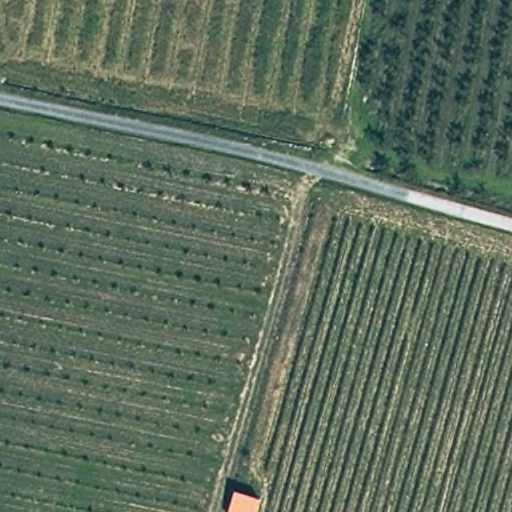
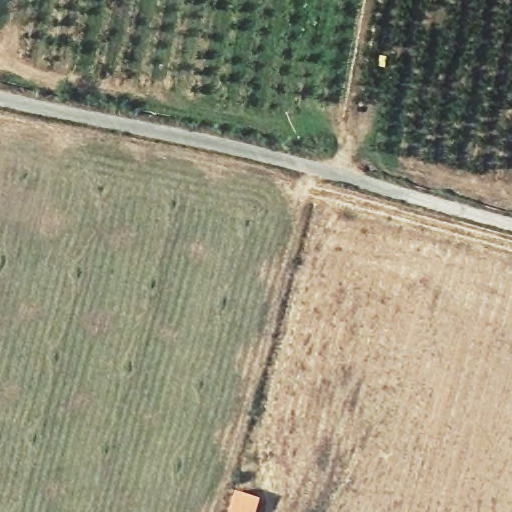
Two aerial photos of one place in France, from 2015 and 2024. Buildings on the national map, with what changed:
unchanged [(256,512),(226,512),(232,492),(260,501),(256,512)]

